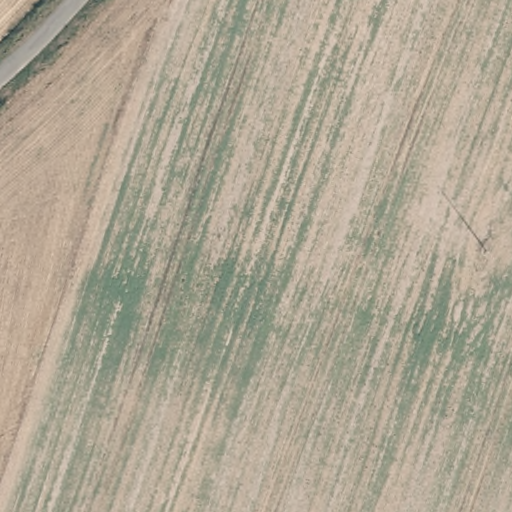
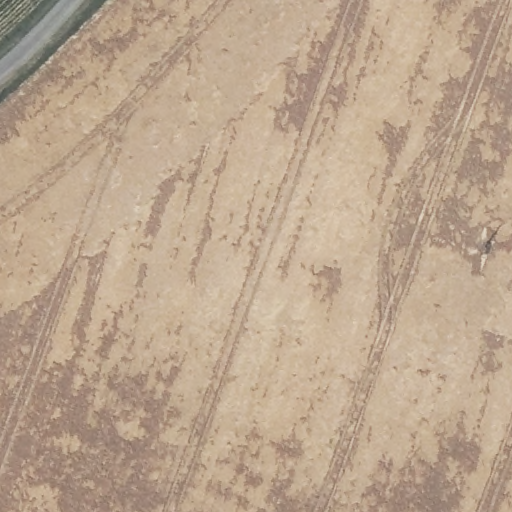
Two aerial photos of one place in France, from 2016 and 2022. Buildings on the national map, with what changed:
[]

